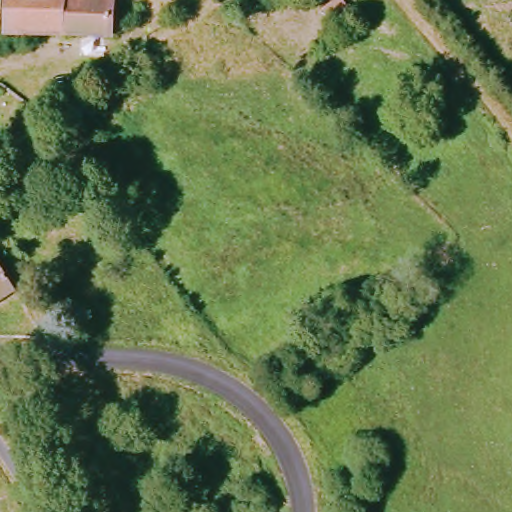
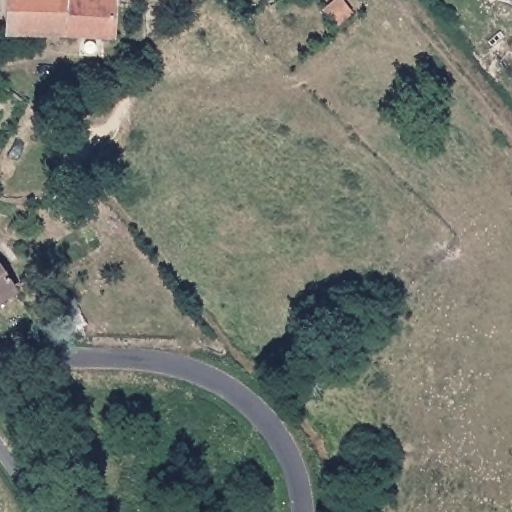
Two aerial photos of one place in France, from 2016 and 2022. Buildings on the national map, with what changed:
unchanged [(0,38),(0,0),(108,0),(108,38),(0,38)]
unchanged [(333,33),(318,16),(333,2),(348,20),(333,33)]
unchanged [(18,290),(0,302),(0,264),(18,290)]

